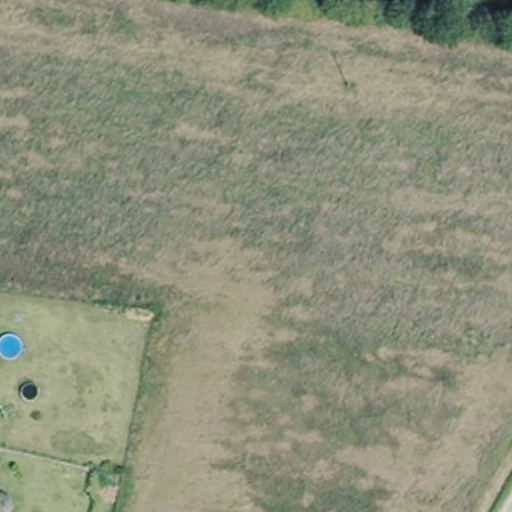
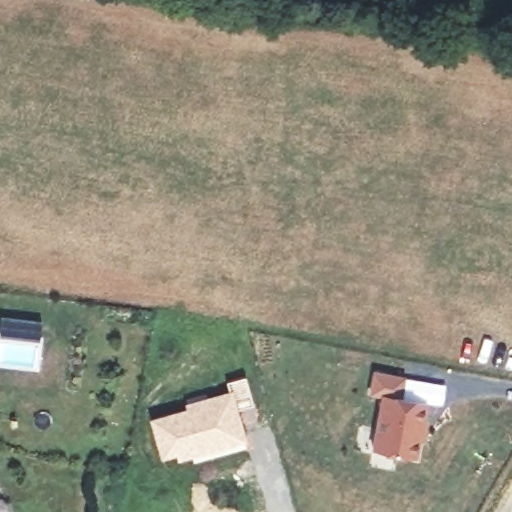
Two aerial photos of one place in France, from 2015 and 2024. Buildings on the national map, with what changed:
new [(428,422),(423,445),(381,436),(391,383),(379,381),(383,360),(412,366),(408,385),(434,390),(430,411),(435,412),(433,423),(428,422)]
new [(185,406),(184,402),(232,388),(229,381),(245,376),(253,404),(239,408),(247,442),(178,460),(176,454),(160,458),(148,417),(185,406)]

